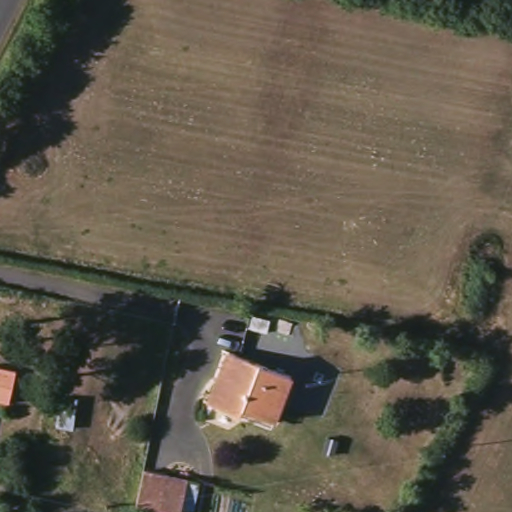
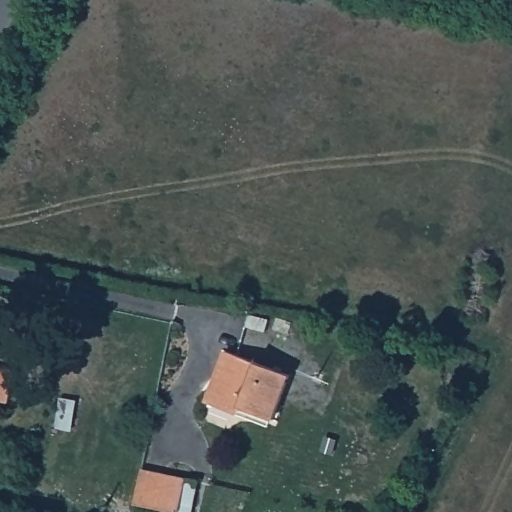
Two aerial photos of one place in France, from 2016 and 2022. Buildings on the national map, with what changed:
unchanged [(240,406),(237,412),(210,403),(225,352),(292,372),(278,417),(240,406)]
unchanged [(0,365),(17,369),(11,398),(0,396),(0,365)]
unchanged [(187,479),(180,512),(135,512),(143,471),(187,479)]

